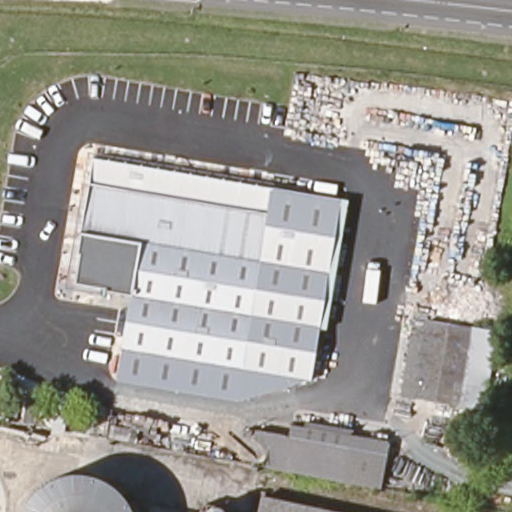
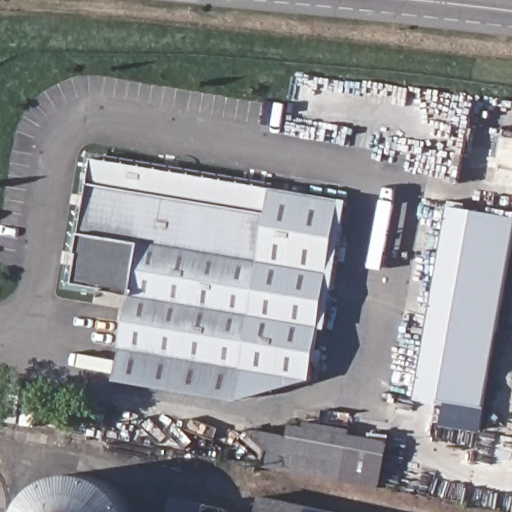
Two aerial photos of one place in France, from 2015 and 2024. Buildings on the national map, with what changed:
unchanged [(308,378),(240,398),(113,381),(130,293),(70,286),(80,232),(91,155),(339,197),(308,378)]
new [(482,412),(415,400),(449,206),(512,216),(512,237),(482,412)]
demolished [(468,330),(456,407),(418,401),(429,323),(468,330)]
unchanged [(380,487),(264,466),(268,451),(256,436),(258,430),(288,435),(290,424),(304,427),(304,422),(351,429),(351,435),(389,442),(387,455),(380,487)]
unchanged [(95,476),(105,478),(114,483),(123,488),(129,496),(135,504),(139,512),(25,512),(28,506),(34,498),(40,491),(49,485),(58,480),(67,477),(75,476),(85,475),(95,476)]
demolished [(6,491),(9,501),(9,511),(9,512),(0,512),(0,477),(3,481),(6,491)]
unchanged [(283,507),(282,512),(262,512),(264,503),(283,507)]
unchanged [(210,512),(210,507),(233,511),(232,512),(210,512)]
unchanged [(307,512),(282,512),(283,507),(307,512)]
unchanged [(173,512),(152,512),(153,508),(173,512)]

